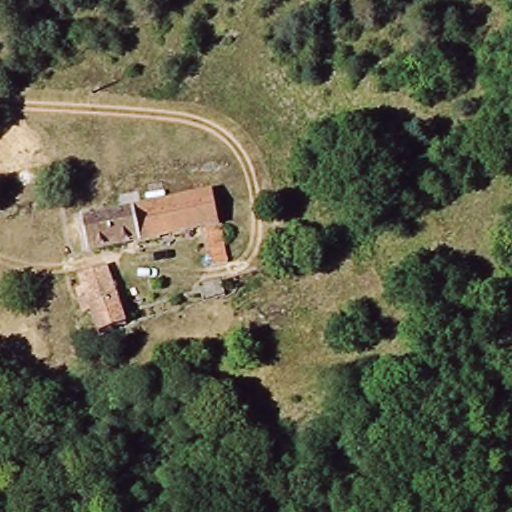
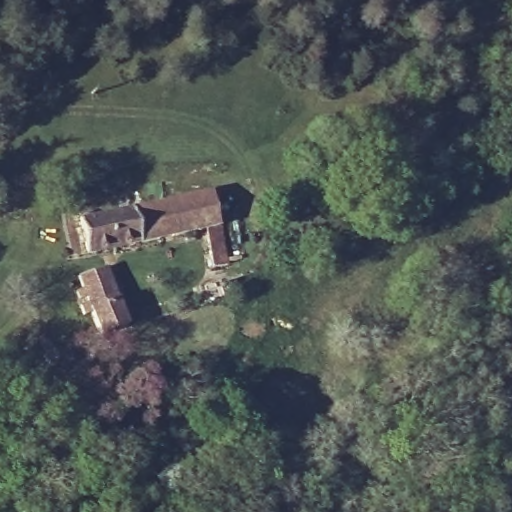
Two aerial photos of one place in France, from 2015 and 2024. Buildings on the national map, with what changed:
unchanged [(221,239),(230,240),(234,280),(216,283),(210,283),(199,244),(79,255),(71,213),(214,198),(221,239)]
unchanged [(86,276),(94,274),(113,272),(126,327),(112,333),(101,333),(96,308),(79,309),(76,289),(87,287),(86,276)]
unchanged [(228,300),(231,316),(205,320),(203,304),(228,300)]

